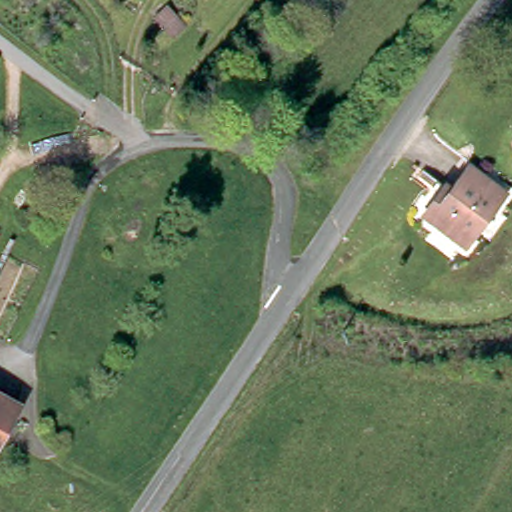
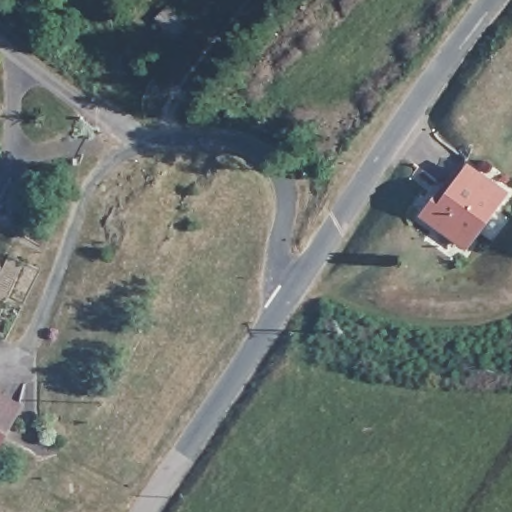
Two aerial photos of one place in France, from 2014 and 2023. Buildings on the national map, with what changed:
unchanged [(508,197),(467,251),(427,220),(440,203),(447,208),(475,171),(508,197)]
unchanged [(23,407),(5,445),(0,453),(0,395),(23,407)]

